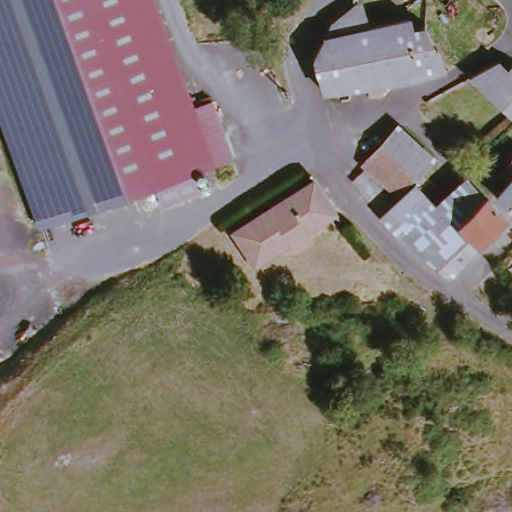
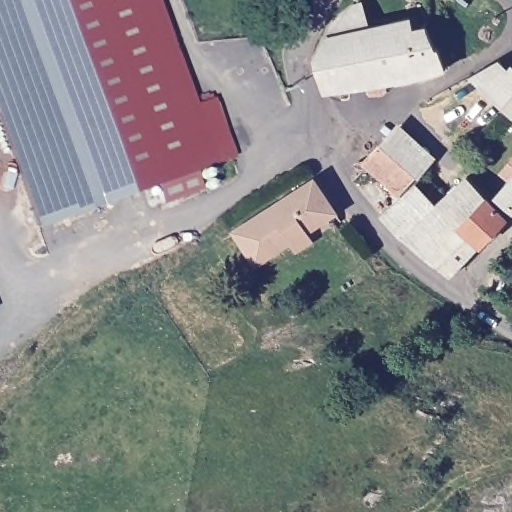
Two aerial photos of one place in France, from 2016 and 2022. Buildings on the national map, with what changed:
unchanged [(199,107),(220,164),(201,171),(207,189),(169,205),(162,185),(48,227),(0,94),(0,0),(160,0),(199,107)]
unchanged [(330,95),(325,62),(337,24),(362,5),(371,32),(399,19),(405,27),(417,47),(413,50),(429,78),(330,95)]
unchanged [(417,19),(443,50),(445,49),(452,66),(429,78),(413,50),(417,47),(405,27),(417,19)]
unchanged [(512,114),(474,78),(502,62),(512,70),(512,114)]
unchanged [(218,100),(240,157),(220,164),(199,107),(218,100)]
unchanged [(404,120),(438,154),(421,173),(385,142),(404,120)]
unchanged [(421,173),(403,194),(368,163),(385,142),(421,173)]
unchanged [(512,171),(512,175),(510,173),(512,171)]
unchanged [(512,212),(455,270),(407,238),(385,214),(420,184),(440,203),(472,173),(512,212)]
unchanged [(302,256),(295,246),(261,269),(240,235),(318,184),(339,216),(312,234),(318,246),(302,256)]
unchanged [(512,184),(512,196),(507,192),(512,184)]

